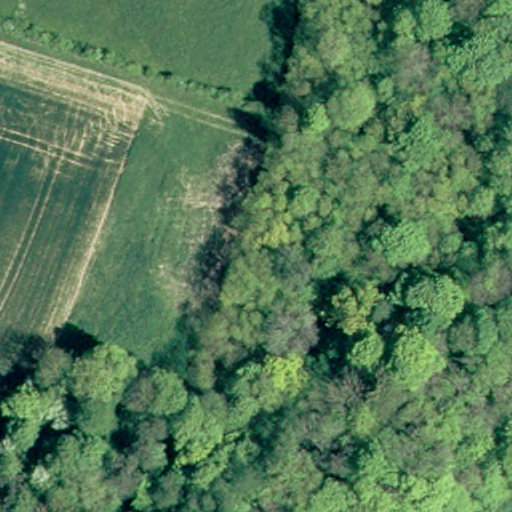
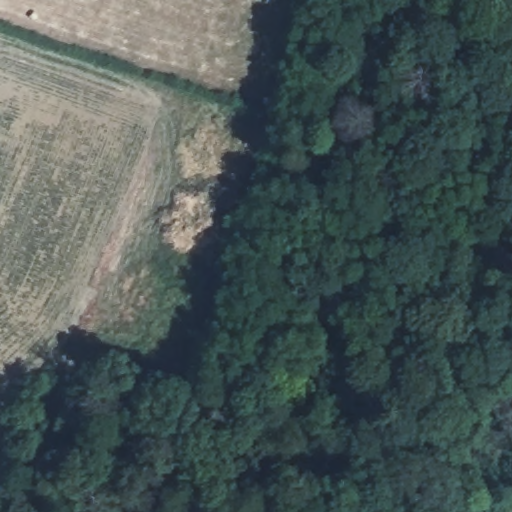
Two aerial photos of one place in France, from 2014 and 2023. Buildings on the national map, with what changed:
[]

